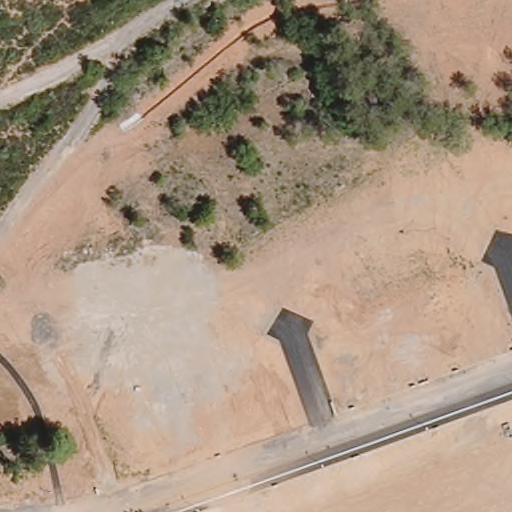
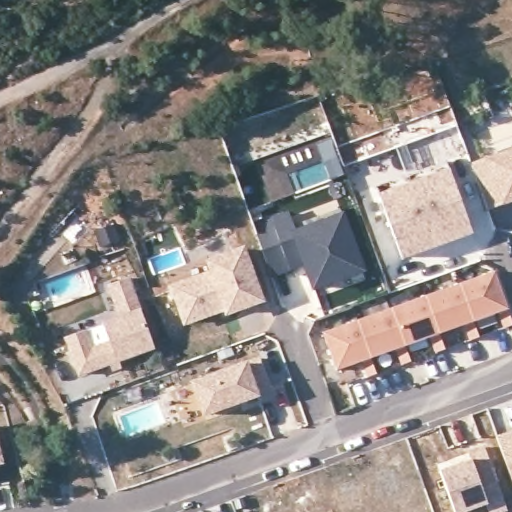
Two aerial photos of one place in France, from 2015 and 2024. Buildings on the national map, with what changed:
new [(488,208),(473,165),(512,151),(512,200),(488,208)]
new [(404,263),(383,201),(379,192),(450,167),(453,175),(475,237),(404,263)]
new [(313,290),(304,263),(289,269),(273,276),(253,224),(289,210),(294,223),(340,209),(343,215),(349,230),(366,271),(313,290)]
new [(186,323),(173,287),(213,273),(209,262),(243,249),(261,301),(228,313),(226,308),(213,313),(186,323)]
new [(495,272),(512,320),(512,326),(505,328),(499,313),(474,322),(461,284),(495,272)]
unchanged [(85,330),(92,349),(110,343),(104,324),(121,317),(109,285),(128,278),(153,348),(118,360),(79,374),(66,337),(85,330)]
new [(461,284),(474,322),(480,337),(471,341),(465,325),(440,334),(427,296),(461,284)]
new [(427,296),(440,334),(446,350),(437,353),(431,337),(406,346),(392,309),(427,296)]
new [(392,309),(406,346),(412,362),(402,365),(397,349),(371,358),(358,321),(392,309)]
new [(358,321),(371,358),(377,374),(368,377),(363,362),(337,371),(324,333),(358,321)]
new [(204,415),(193,383),(261,359),(271,388),(256,393),(258,396),(246,400),(239,403),(204,415)]
new [(498,437),(512,432),(512,479),(498,437)]
new [(469,453),(485,447),(508,511),(505,512),(490,512),(487,505),(467,512),(455,512),(440,471),(471,460),(469,453)]
new [(0,464),(0,455),(2,463),(0,464)]
demolished [(0,483),(15,479),(21,501),(0,505),(0,483)]

